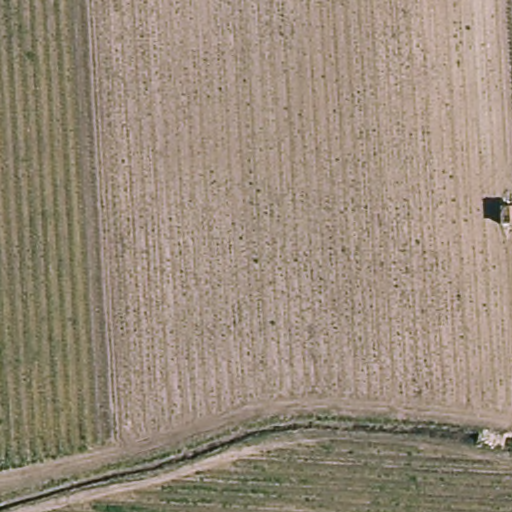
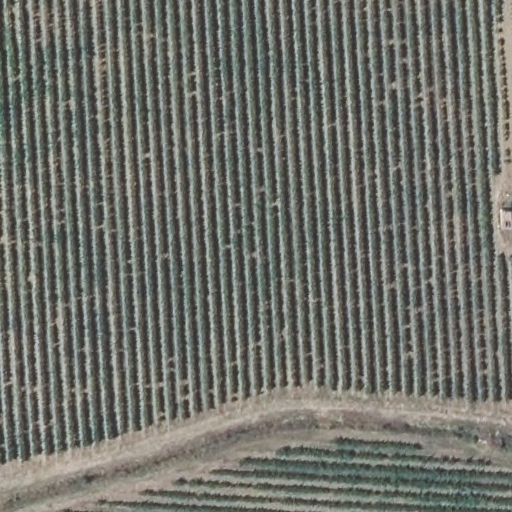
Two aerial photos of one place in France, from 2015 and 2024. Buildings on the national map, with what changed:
unchanged [(495,211),(512,211),(512,227),(496,228),(495,211)]

